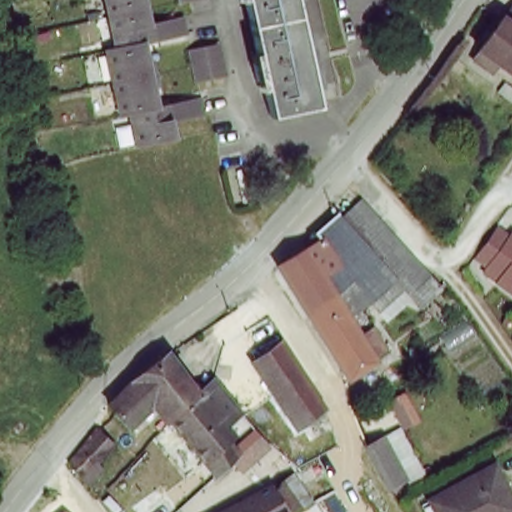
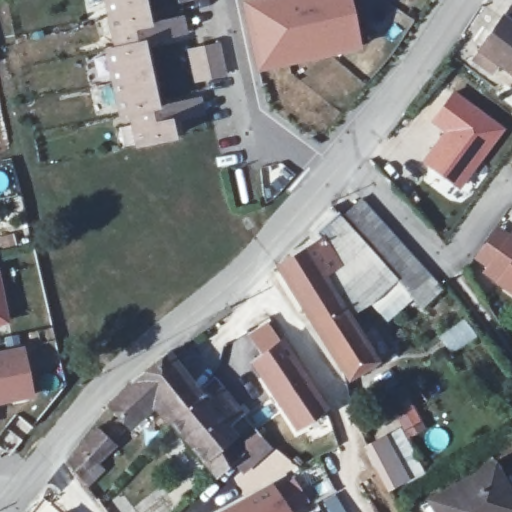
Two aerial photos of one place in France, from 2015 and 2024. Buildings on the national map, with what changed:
unchanged [(150,35),(140,37),(145,59),(150,58),(155,80),(150,81),(155,103),(165,100),(172,133),(138,141),(130,108),(121,110),(107,45),(116,43),(110,16),(106,0),(142,0),(144,9),(150,35)]
new [(277,57),(257,59),(245,3),(259,0),(349,0),(360,47),(277,64),(277,57)]
demolished [(293,0),(317,109),(271,119),(245,0),(293,0)]
unchanged [(482,49),(478,46),(509,0),(511,0),(512,1),(512,69),(500,60),(493,69),(475,57),(482,49)]
unchanged [(182,12),(185,27),(156,34),(152,18),(182,12)]
unchanged [(193,44),(218,38),(225,69),(200,74),(195,75),(188,45),(193,44)]
new [(442,132),(428,122),(453,89),(505,128),(460,189),(420,161),(442,132)]
unchanged [(200,93),(203,108),(174,115),(170,99),(200,93)]
unchanged [(350,231),(332,213),(350,193),(432,281),(413,299),(398,282),(350,231)]
unchanged [(373,306),(368,300),(358,288),(311,317),(282,272),(297,262),(294,255),(332,213),(350,231),(398,282),(373,306)]
unchanged [(473,259),(500,226),(512,236),(512,288),(473,259)]
unchanged [(355,323),(367,343),(378,336),(392,357),(380,365),(381,367),(372,373),(367,366),(350,376),(311,317),(358,288),(368,300),(373,306),(355,323)]
new [(0,322),(0,299),(5,321),(0,322)]
unchanged [(324,403),(326,409),(297,428),(252,359),(282,338),(324,403)]
new [(37,397),(0,403),(0,357),(31,353),(37,397)]
unchanged [(159,353),(177,377),(148,402),(127,377),(159,353)]
unchanged [(139,411),(122,428),(100,406),(127,377),(148,402),(139,411)]
unchanged [(189,394),(205,381),(235,413),(232,419),(270,460),(250,477),(232,456),(208,475),(148,402),(177,377),(189,394)]
unchanged [(115,443),(99,465),(106,471),(89,492),(68,464),(97,427),(115,443)]
unchanged [(389,488),(387,486),(375,460),(373,456),(370,449),(382,443),(402,482),(389,488)]
unchanged [(294,466),(315,497),(291,512),(225,512),(294,466)]
unchanged [(497,468),(512,496),(512,512),(441,512),(435,500),(497,468)]
unchanged [(63,511),(64,512),(63,512),(63,511)]

